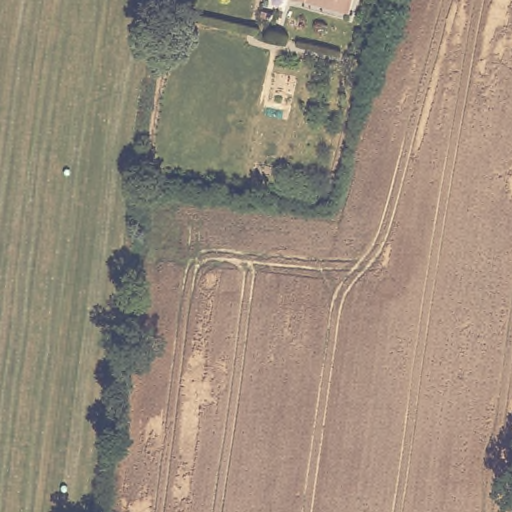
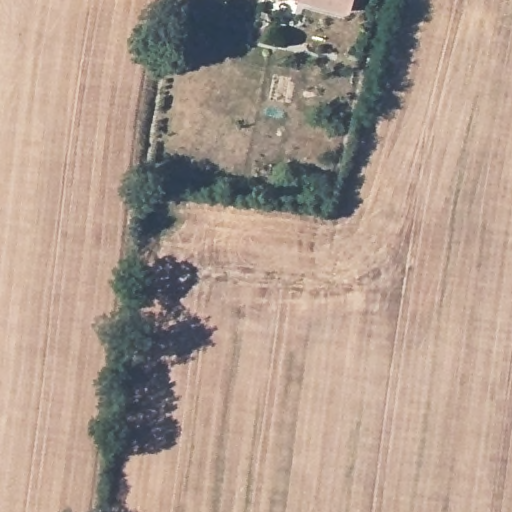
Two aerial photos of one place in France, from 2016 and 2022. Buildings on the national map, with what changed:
unchanged [(323,0),(369,0),(367,10),(323,0)]

